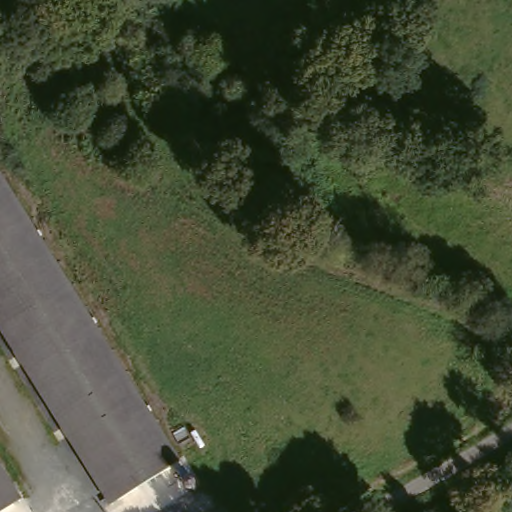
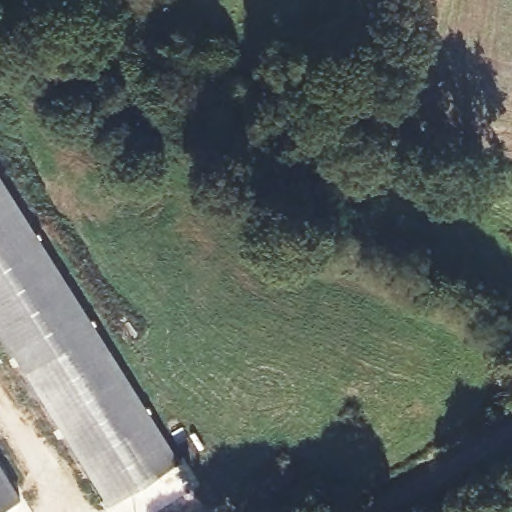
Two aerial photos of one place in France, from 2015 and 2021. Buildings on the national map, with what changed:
unchanged [(0,332),(0,179),(177,461),(107,505),(0,332)]
unchanged [(16,500),(0,510),(0,475),(16,500)]

